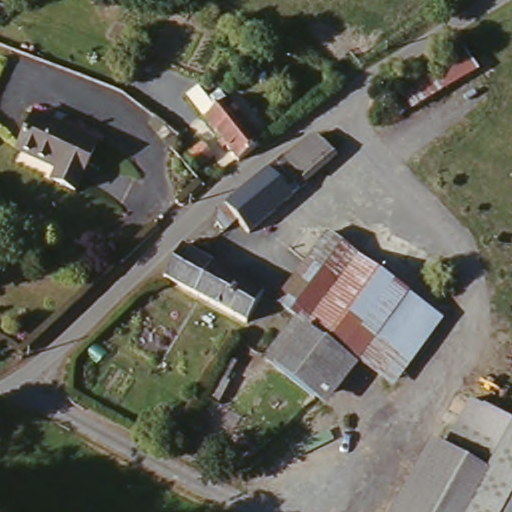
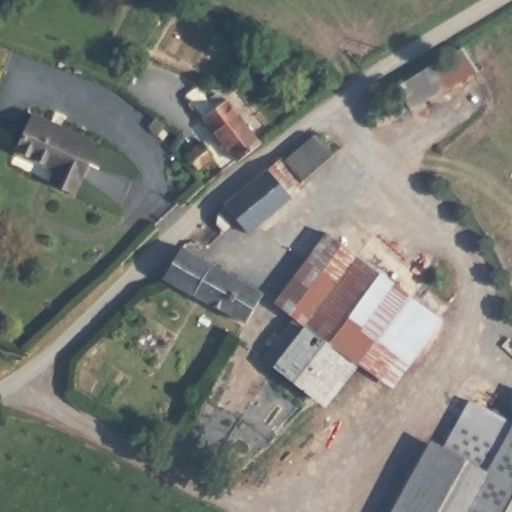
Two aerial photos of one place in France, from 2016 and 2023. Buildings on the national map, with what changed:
unchanged [(460,33),(477,65),(410,111),(391,80),(460,33)]
unchanged [(233,155),(230,154),(199,113),(222,95),(255,139),(233,155)]
unchanged [(97,140),(75,188),(51,175),(55,166),(18,146),(35,109),(97,140)]
unchanged [(259,222),(250,210),(235,222),(221,207),(233,195),(292,149),(303,163),(308,159),(298,144),(324,124),(335,139),(318,152),(329,164),(259,222)]
unchanged [(214,156),(197,168),(187,154),(201,141),(214,156)]
unchanged [(450,317),(400,386),(363,359),(332,403),(270,358),(302,315),(281,299),(330,230),(450,317)]
unchanged [(267,291),(248,324),(165,275),(167,272),(160,267),(165,262),(182,245),(267,291)]
unchanged [(239,362),(227,382),(216,376),(227,356),(239,362)]
unchanged [(439,448),(468,398),(512,421),(512,512),(392,512),(430,443),(439,448)]

